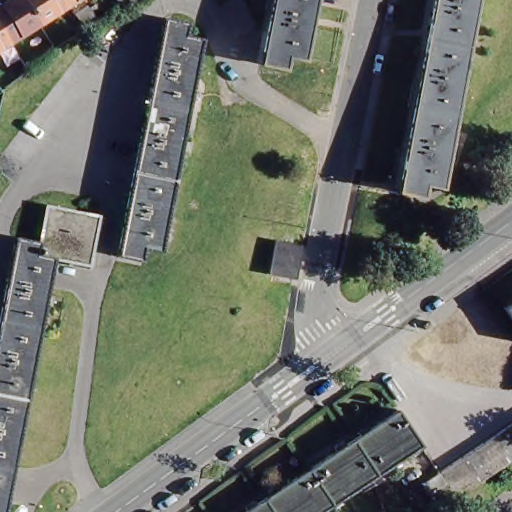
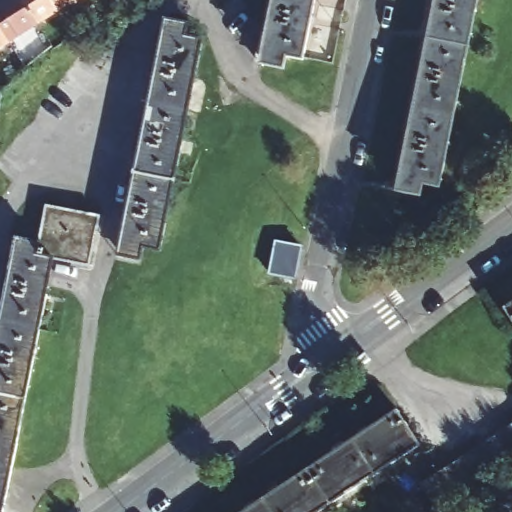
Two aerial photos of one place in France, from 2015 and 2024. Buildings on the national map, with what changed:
unchanged [(6,35),(0,24),(0,0),(24,0),(35,16),(6,35)]
unchanged [(24,0),(60,0),(35,16),(24,0)]
unchanged [(313,0),(301,55),(286,51),(283,65),(258,60),(270,0),(313,0)]
unchanged [(473,0),(434,194),(417,191),(415,204),(391,198),(431,0),(473,0)]
unchanged [(161,18),(185,22),(182,35),(198,39),(158,251),(141,247),(138,260),(115,255),(161,18)]
unchanged [(0,39),(0,24),(6,35),(0,39)]
unchanged [(41,207),(93,218),(82,266),(47,259),(30,256),(33,243),(41,207)]
unchanged [(47,259),(0,494),(0,286),(10,238),(33,243),(30,256),(47,259)]
unchanged [(293,280),(272,275),(269,275),(275,243),(300,248),(293,280)]
unchanged [(503,299),(512,293),(512,312),(503,299)]
unchanged [(396,405),(419,439),(380,465),(369,473),(330,499),(309,512),(234,512),(396,405)]
unchanged [(448,464),(459,457),(470,449),(481,442),(492,435),(503,427),(512,421),(512,453),(506,457),(495,464),(485,471),(473,479),(462,486),(451,493),(438,503),(424,480),(437,471),(448,464)]

